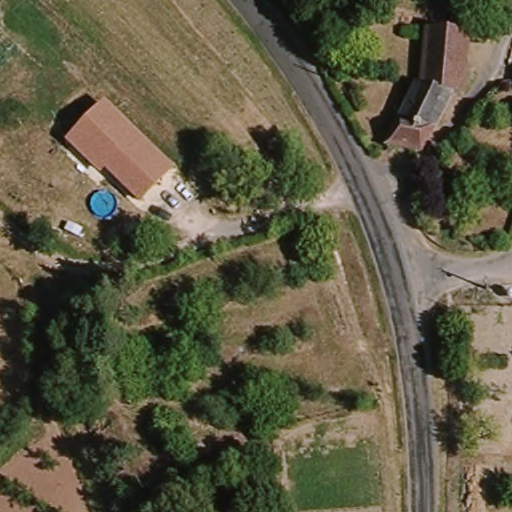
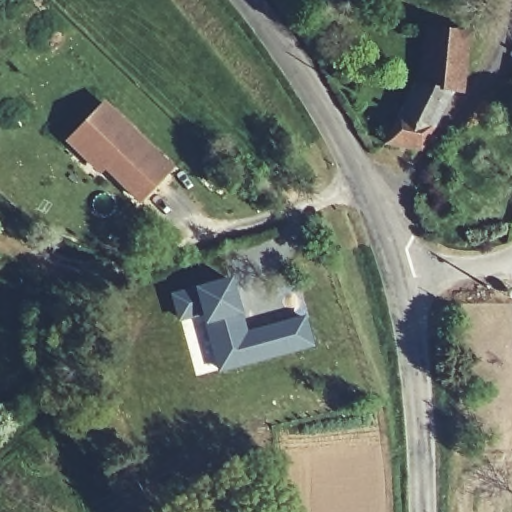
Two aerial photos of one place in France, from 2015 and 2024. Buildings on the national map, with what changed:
unchanged [(423,91),(429,92),(437,28),(477,33),(469,95),(460,93),(441,131),(430,153),(395,146),(423,91)]
unchanged [(176,167),(142,204),(105,170),(100,176),(66,144),(106,101),(176,167)]
new [(248,329),(306,313),(315,346),(216,371),(200,316),(178,321),(169,292),(192,286),(233,274),(248,329)]

